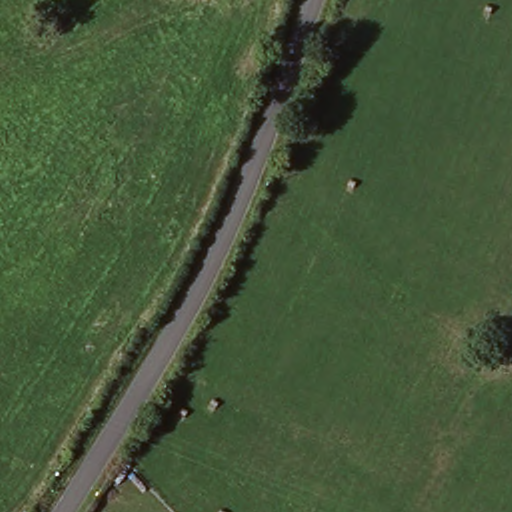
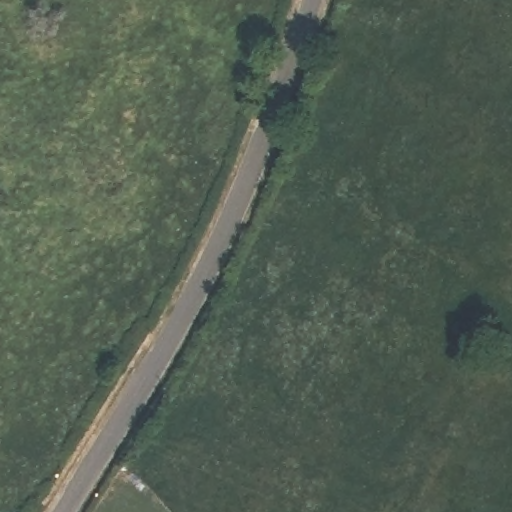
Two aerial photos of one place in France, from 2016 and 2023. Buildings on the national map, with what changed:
[]

